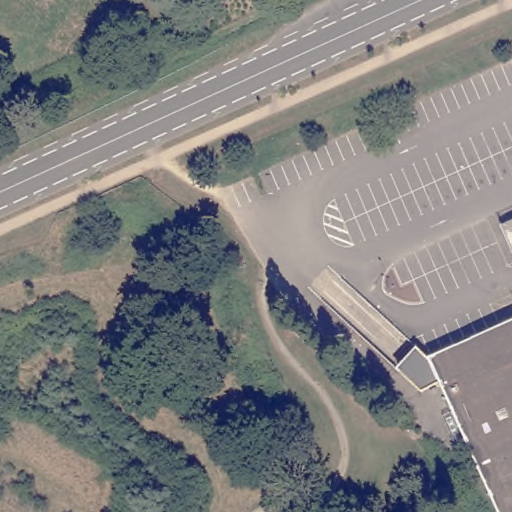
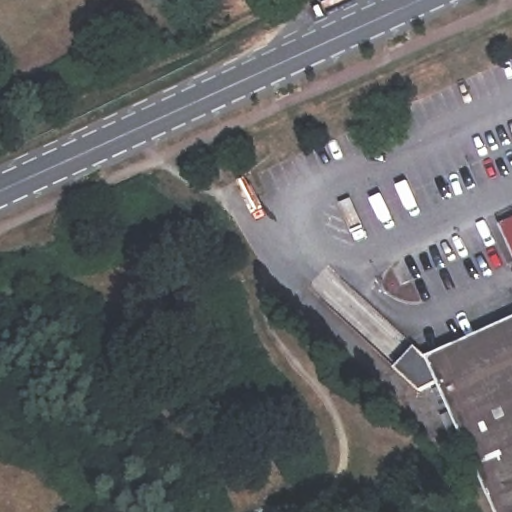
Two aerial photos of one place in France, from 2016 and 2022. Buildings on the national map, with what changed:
unchanged [(512,223),(512,244),(504,226),(512,223)]
unchanged [(512,512),(502,512),(443,382),(423,391),(401,371),(421,349),(422,349),(432,358),(512,323),(512,512)]

